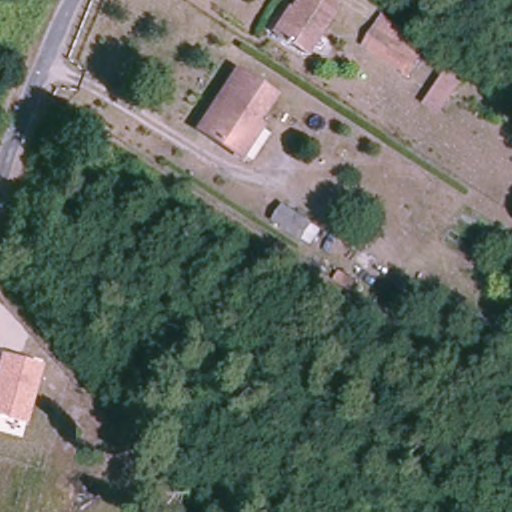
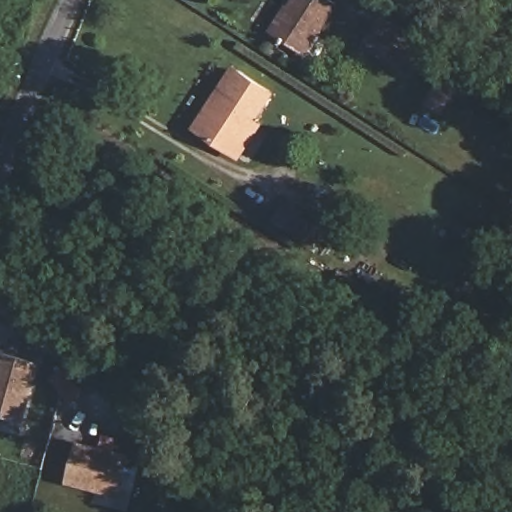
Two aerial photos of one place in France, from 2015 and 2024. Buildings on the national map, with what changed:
unchanged [(320,32),(332,38),(317,62),(267,32),(284,3),(288,5),(292,0),(332,0),(338,4),(320,32)]
unchanged [(361,46),(382,16),(432,43),(413,77),(361,46)]
unchanged [(245,156),(233,148),(199,128),(236,65),(268,86),(251,118),(262,126),(245,156)]
unchanged [(433,99),(442,78),(453,84),(443,105),(433,99)]
unchanged [(280,220),(290,207),(317,223),(308,238),(280,220)]
unchanged [(25,420),(0,413),(0,351),(41,362),(25,420)]
new [(78,442),(102,448),(105,436),(118,439),(117,452),(130,454),(119,498),(67,485),(78,442)]

